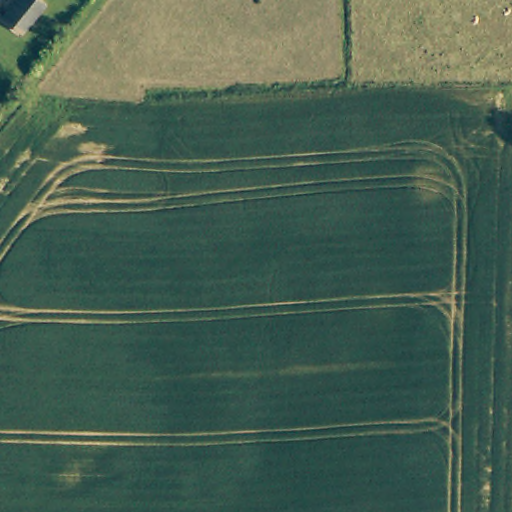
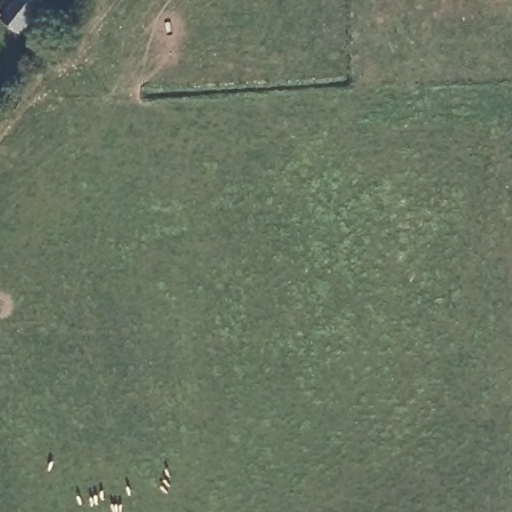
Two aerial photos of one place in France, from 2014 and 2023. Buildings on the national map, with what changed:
unchanged [(24,33),(14,26),(1,16),(13,0),(47,0),(48,1),(24,33)]

